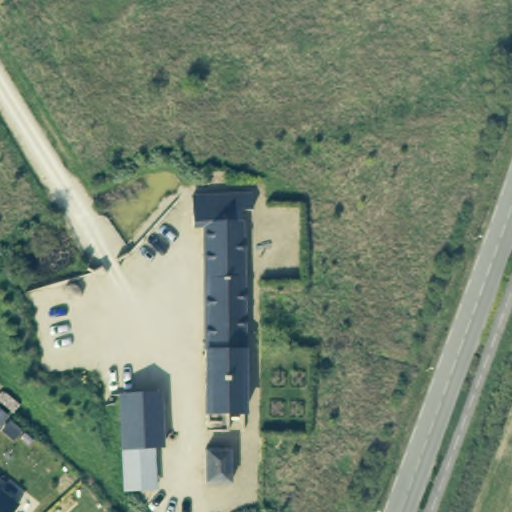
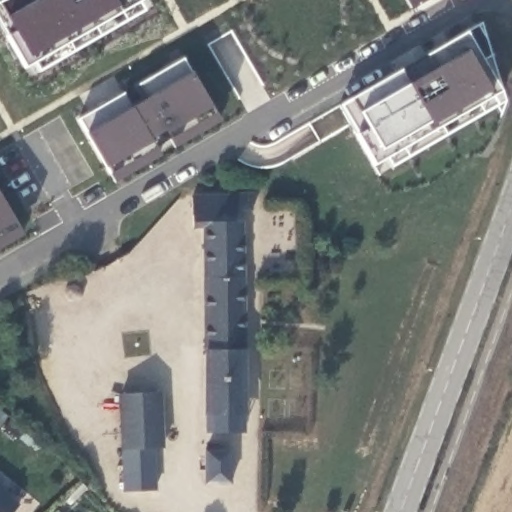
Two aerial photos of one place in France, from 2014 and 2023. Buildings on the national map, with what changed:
new [(139,0),(23,69),(0,26),(0,0),(139,0)]
new [(406,0),(425,0),(410,8),(406,0)]
new [(466,33),(500,92),(374,165),(339,104),(466,33)]
new [(183,57),(191,71),(221,120),(175,148),(170,138),(156,144),(161,155),(113,183),(86,133),(81,118),(183,57)]
unchanged [(208,425),(207,407),(202,220),(195,220),(194,190),(255,189),(256,203),(243,204),(243,216),(256,216),(257,233),(241,233),(246,407),(244,424),(208,425)]
new [(23,234),(0,249),(0,195),(23,234)]
unchanged [(121,398),(160,397),(162,451),(151,451),(123,452),(121,398)]
unchanged [(206,447),(231,446),(232,483),(208,483),(206,447)]
unchanged [(123,452),(151,451),(153,490),(124,491),(123,452)]
unchanged [(23,503),(16,512),(0,512),(0,484),(23,503)]

